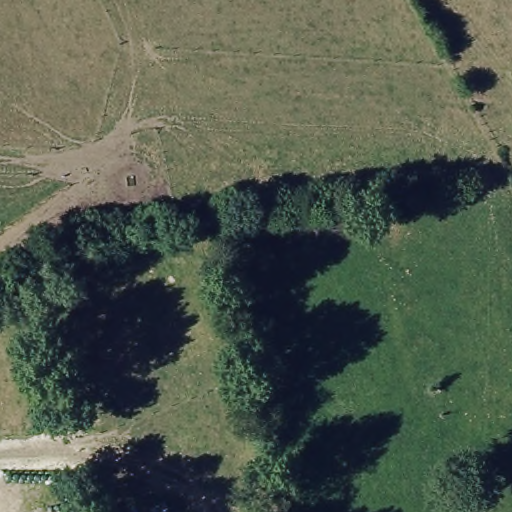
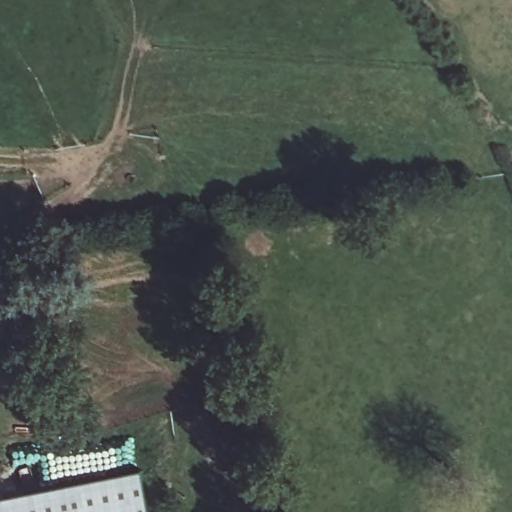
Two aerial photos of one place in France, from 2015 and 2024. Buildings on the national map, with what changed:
new [(0,497),(142,469),(150,512),(0,512),(0,497)]

